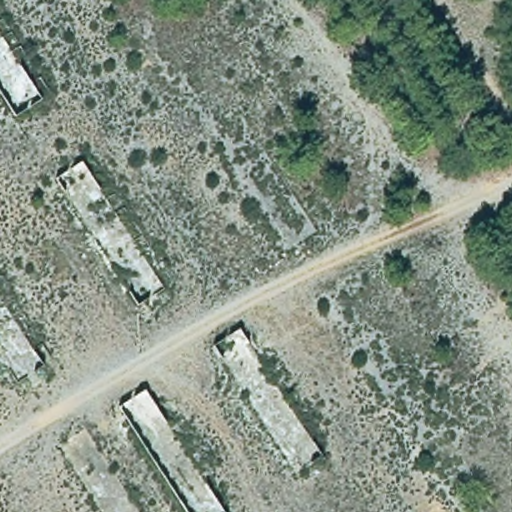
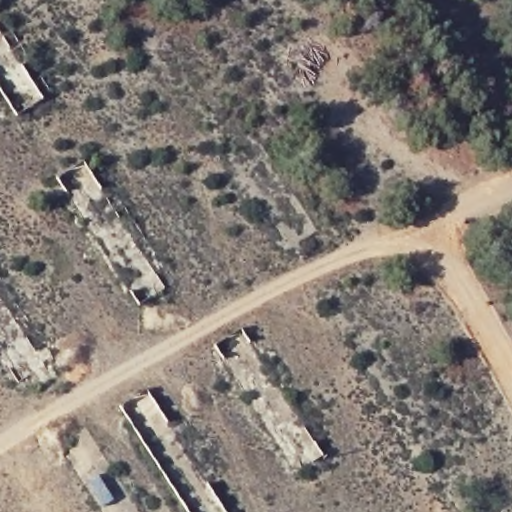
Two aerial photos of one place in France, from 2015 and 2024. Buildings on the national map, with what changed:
[]

